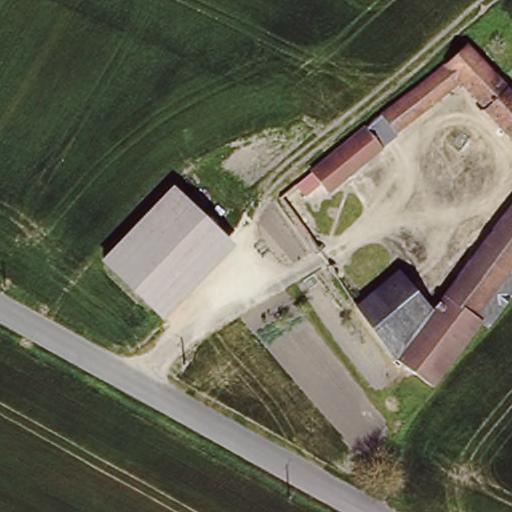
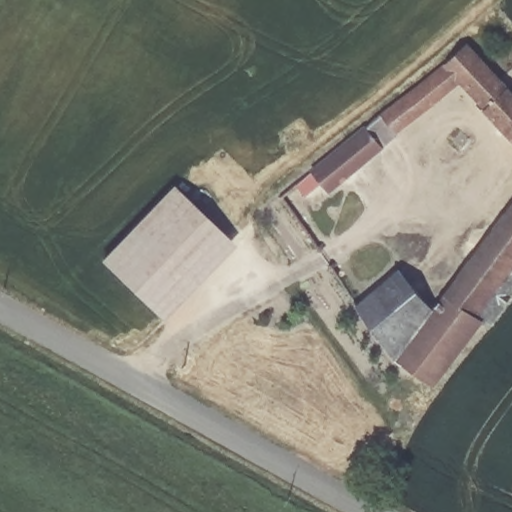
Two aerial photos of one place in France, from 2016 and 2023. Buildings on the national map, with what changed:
unchanged [(512,81),(512,135),(464,77),(399,132),(394,128),(387,134),(374,117),(477,37),(512,81)]
unchanged [(383,147),(326,190),(321,182),(308,191),(299,180),(366,124),(383,147)]
unchanged [(233,246),(168,317),(103,259),(173,186),(233,246)]
unchanged [(295,198),(309,216),(299,222),(288,205),(295,198)]
unchanged [(485,327),(480,324),(433,382),(395,355),(431,307),(512,202),(512,293),(485,327)]
unchanged [(356,301),(394,274),(394,273),(431,307),(395,355),(356,301)]

